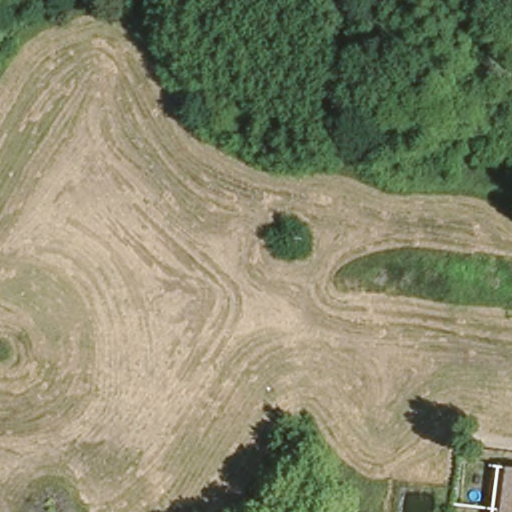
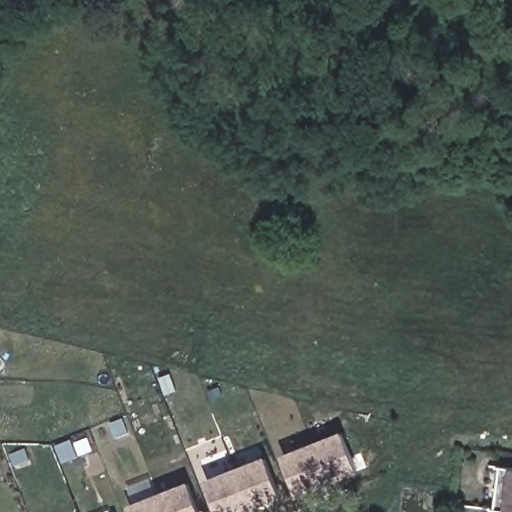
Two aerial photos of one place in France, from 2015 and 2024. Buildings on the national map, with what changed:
new [(341,433),(356,470),(298,493),(283,456),(341,433)]
new [(279,496),(240,512),(220,512),(207,481),(265,458),(279,496)]
unchanged [(512,468),(512,512),(493,512),(499,466),(512,468)]
new [(199,512),(132,512),(130,507),(187,484),(199,512)]
demolished [(41,512),(101,491),(110,512),(41,512)]

